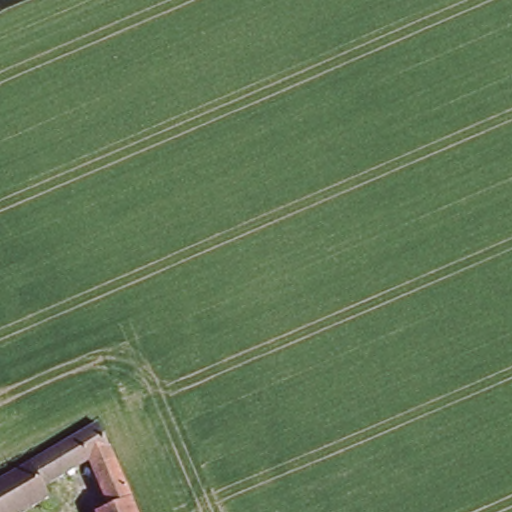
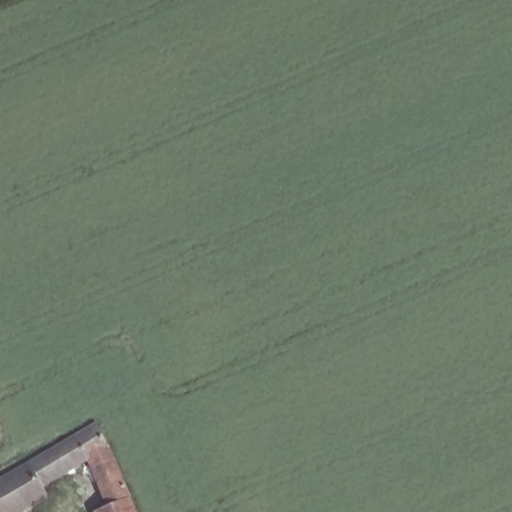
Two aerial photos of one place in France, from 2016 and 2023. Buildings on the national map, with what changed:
unchanged [(100,428),(126,488),(132,503),(136,512),(102,512),(111,508),(91,461),(54,483),(58,491),(23,512),(0,512),(0,485),(100,428)]

